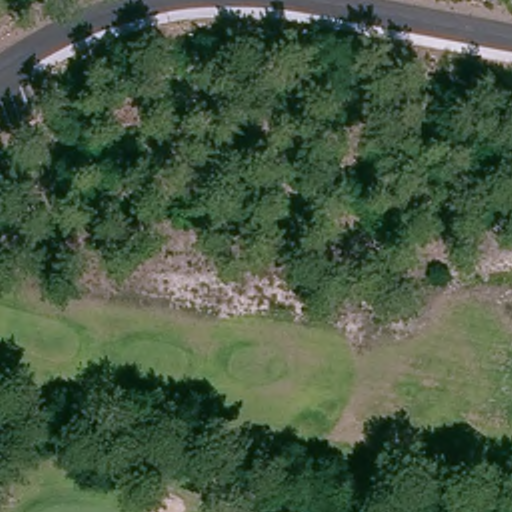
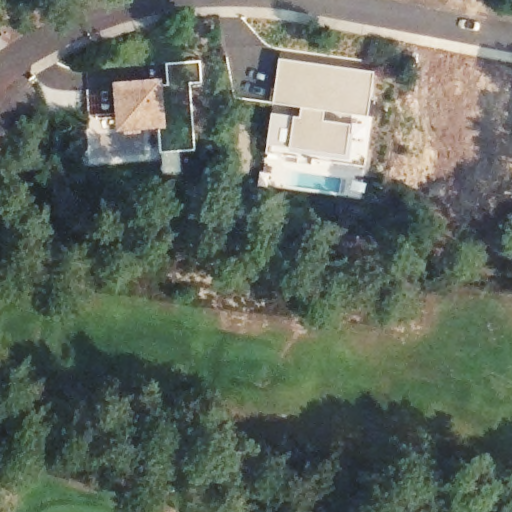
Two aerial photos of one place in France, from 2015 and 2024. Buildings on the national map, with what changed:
new [(169,83),(167,62),(202,59),(203,81),(192,82),(197,149),(162,151),(159,120),(124,123),(121,86),(158,83),(169,83)]
new [(368,114),(327,110),(325,120),(350,124),(346,155),(268,143),(272,113),(301,116),(302,106),(274,102),(280,59),(374,72),(368,114)]

